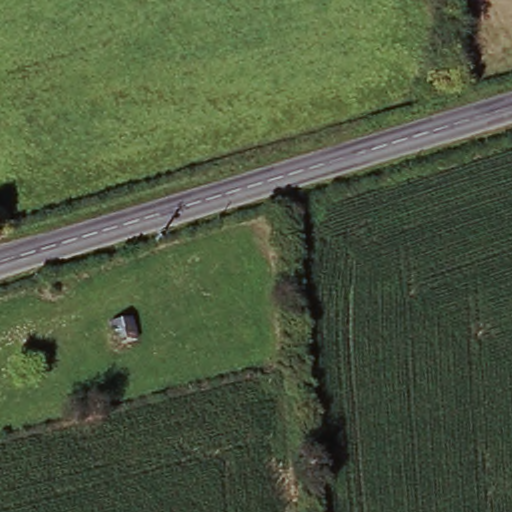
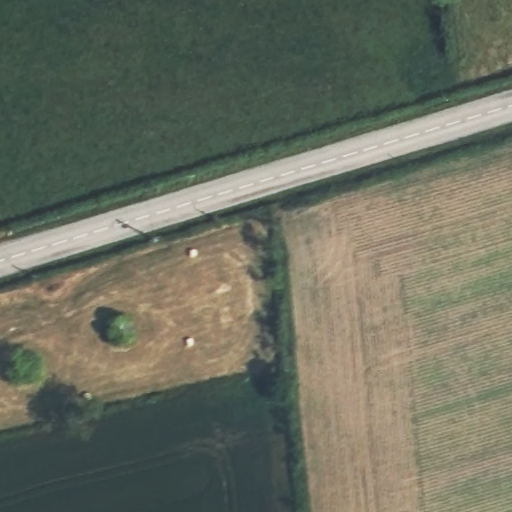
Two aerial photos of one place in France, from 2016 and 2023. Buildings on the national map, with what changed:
unchanged [(129,317),(136,345),(116,351),(108,323),(129,317)]

